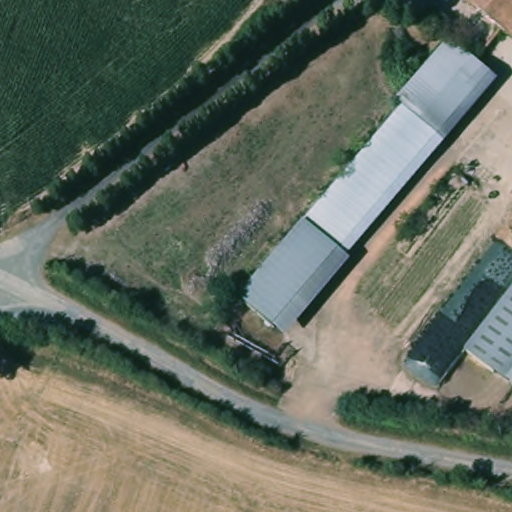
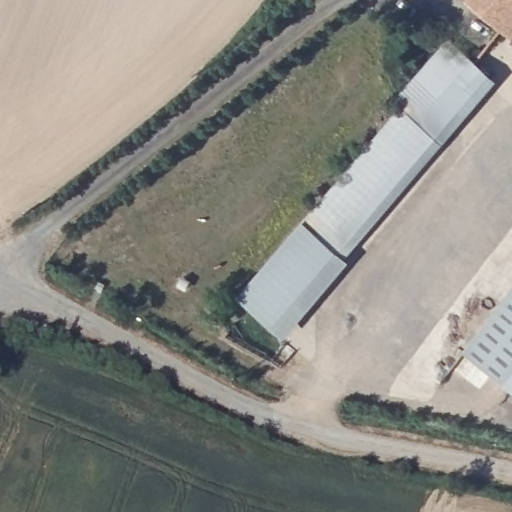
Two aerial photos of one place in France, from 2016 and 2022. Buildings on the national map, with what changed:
unchanged [(469,2),(470,0),(512,0),(512,35),(469,2)]
unchanged [(400,98),(415,82),(445,46),(497,90),(284,336),(242,299),(407,104),(400,98)]
unchanged [(512,292),(512,375),(471,342),(512,292)]

